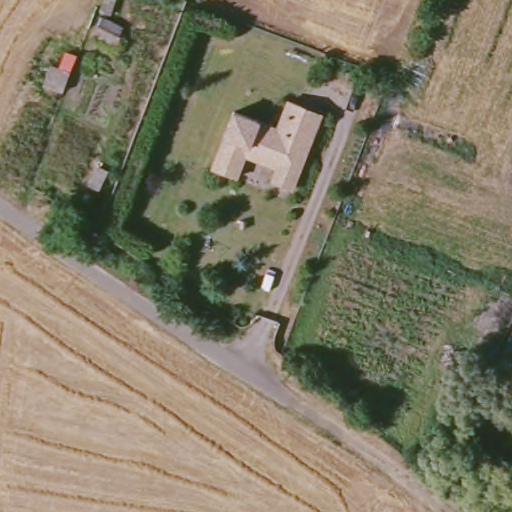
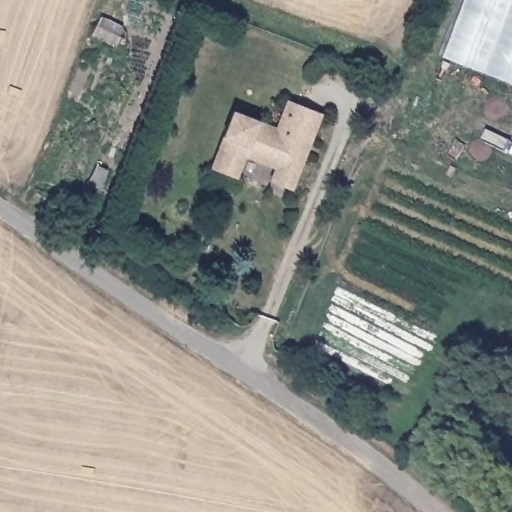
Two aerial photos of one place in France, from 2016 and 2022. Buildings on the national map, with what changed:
unchanged [(122,23),(118,36),(127,39),(124,49),(91,36),(105,0),(119,0),(112,20),(122,23)]
new [(462,0),(512,0),(512,83),(440,56),(462,0)]
unchanged [(236,181),(211,171),(233,115),(276,131),(286,104),(320,117),(291,192),(270,184),(275,171),(244,159),(236,181)]

